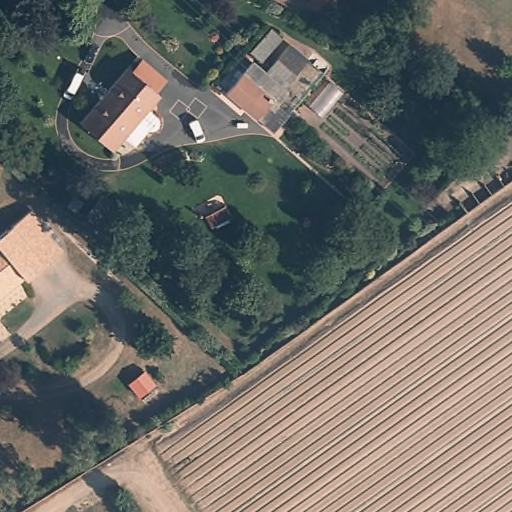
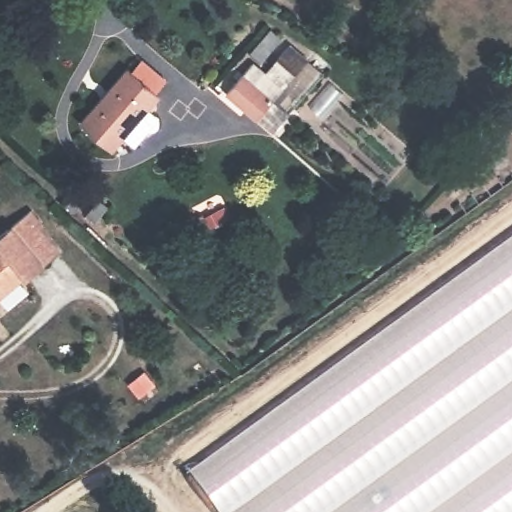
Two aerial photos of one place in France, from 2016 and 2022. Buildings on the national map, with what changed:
unchanged [(227,90),(254,61),(246,57),(273,29),(286,38),(262,65),(269,72),(288,45),(326,74),(275,130),(227,90)]
unchanged [(84,124),(132,65),(165,92),(154,105),(163,114),(166,117),(166,121),(165,125),(162,129),(158,129),(154,129),(138,146),(128,138),(115,151),(84,124)]
unchanged [(34,212),(45,225),(39,229),(60,258),(26,283),(23,279),(0,296),(0,236),(34,212)]
new [(512,512),(217,512),(190,475),(512,242),(512,512)]

